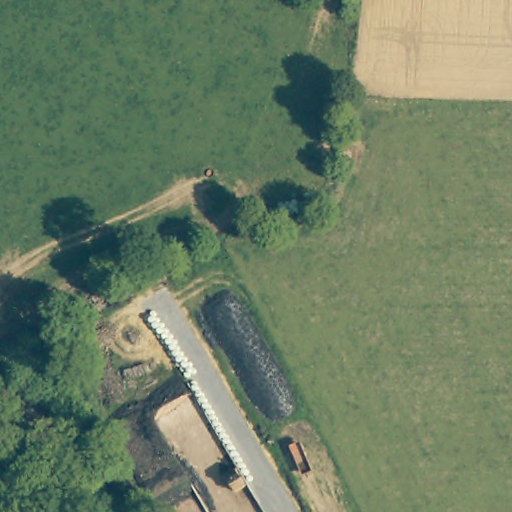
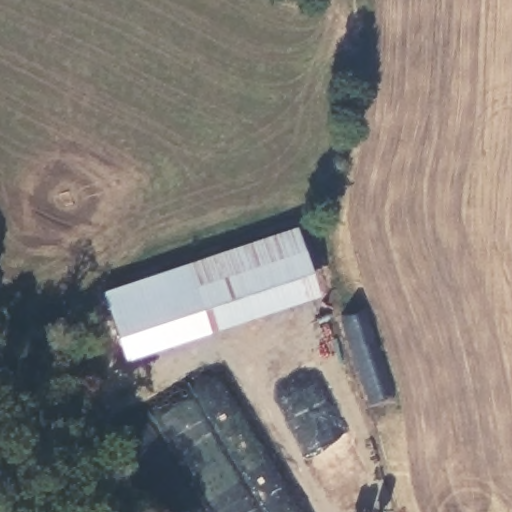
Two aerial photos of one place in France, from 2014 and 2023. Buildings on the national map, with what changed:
new [(125,362),(102,292),(298,226),(320,297),(125,362)]

